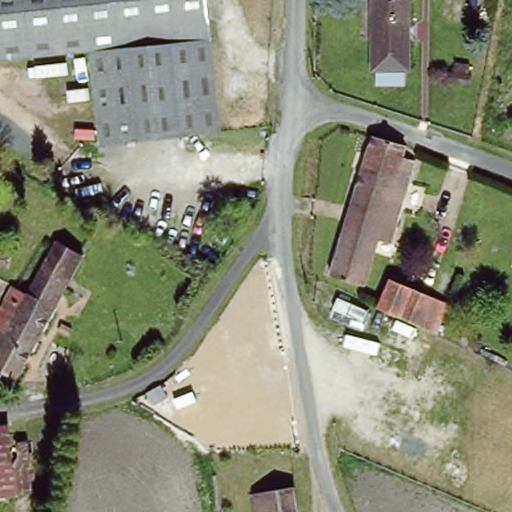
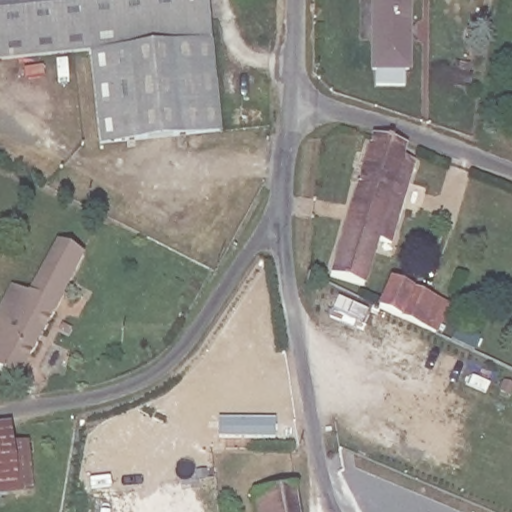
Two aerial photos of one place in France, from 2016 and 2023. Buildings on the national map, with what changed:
unchanged [(90,56),(0,65),(0,0),(206,0),(210,47),(91,58),(90,56)]
unchanged [(409,87),(377,87),(377,70),(374,70),(374,0),(415,0),(415,70),(409,70),(409,87)]
unchanged [(210,47),(218,135),(100,147),(91,58),(210,47)]
unchanged [(407,145),(403,156),(414,160),(386,244),(375,241),(362,277),(330,265),(373,135),(407,145)]
unchanged [(85,259),(18,383),(0,373),(0,323),(7,309),(20,316),(59,245),(85,259)]
unchanged [(11,257),(6,270),(0,267),(0,252),(11,257)]
unchanged [(443,306),(429,337),(379,313),(393,283),(443,306)]
unchanged [(32,498),(11,500),(0,501),(0,430),(5,429),(5,433),(7,454),(28,453),(32,498)]
unchanged [(302,491),(304,512),(262,512),(261,493),(302,491)]

